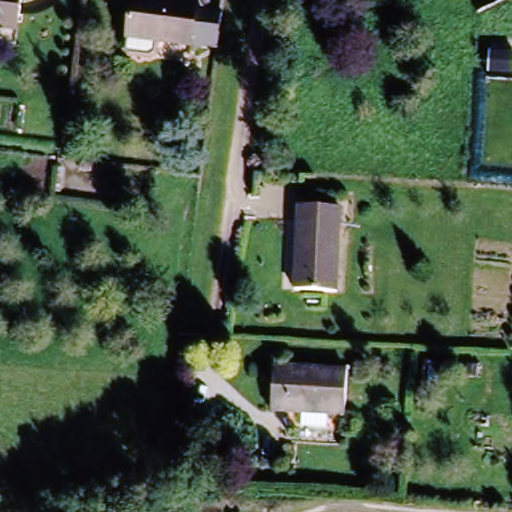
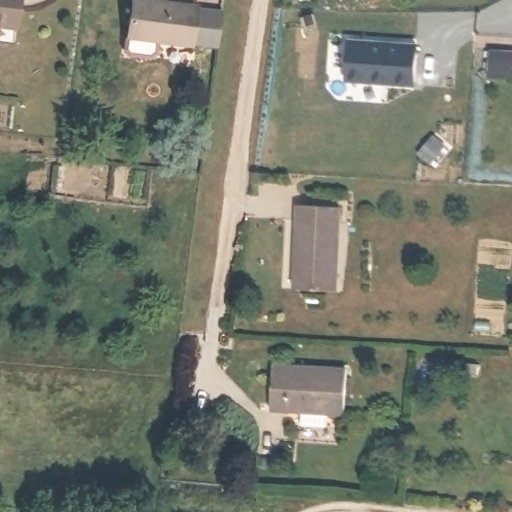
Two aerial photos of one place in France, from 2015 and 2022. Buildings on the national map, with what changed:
unchanged [(0,24),(0,0),(18,0),(15,25),(0,24)]
unchanged [(120,43),(125,0),(198,0),(222,4),(216,43),(151,34),(149,46),(145,50),(124,48),(120,43)]
new [(419,43),(417,86),(345,83),(348,37),(419,43)]
new [(512,48),(512,68),(512,74),(487,73),(487,66),(488,48),(512,48)]
unchanged [(339,204),(335,289),(294,288),(298,202),(339,204)]
unchanged [(269,366),(343,369),(341,414),(267,411),(269,366)]

